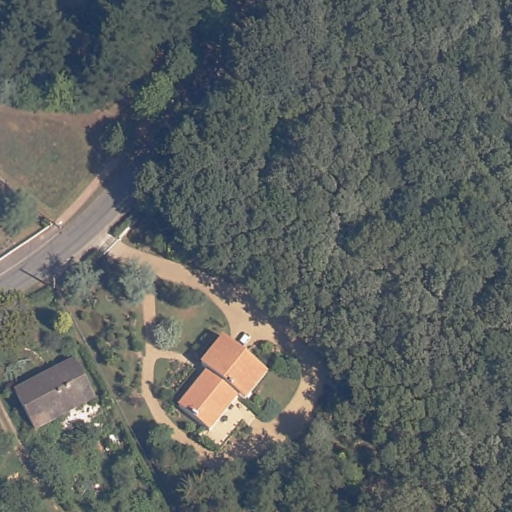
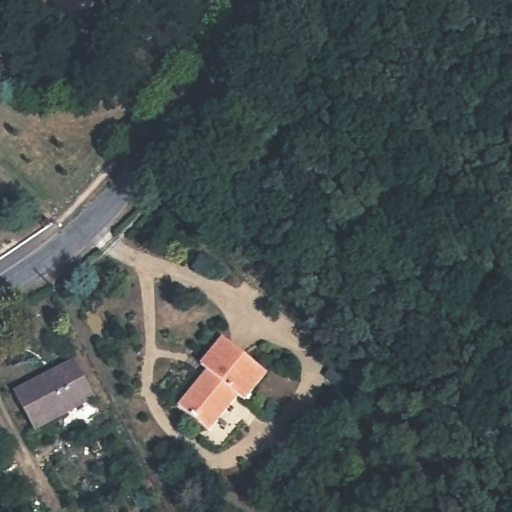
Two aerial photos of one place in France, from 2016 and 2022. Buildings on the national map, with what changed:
unchanged [(179,402),(207,367),(201,362),(222,335),(265,369),(243,396),(236,392),(209,426),(179,402)]
unchanged [(15,393),(74,361),(94,398),(34,430),(15,393)]
unchanged [(336,373),(357,390),(346,403),(326,386),(336,373)]

